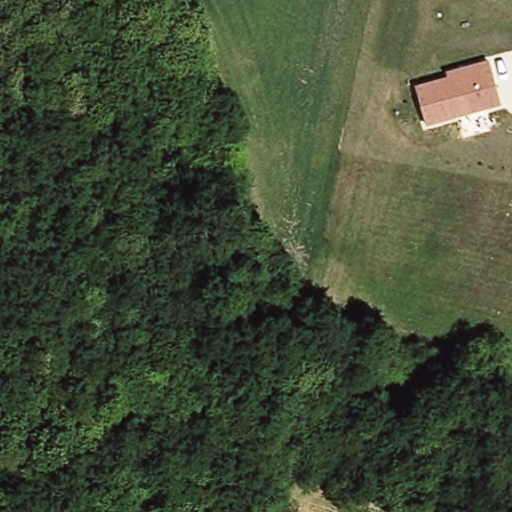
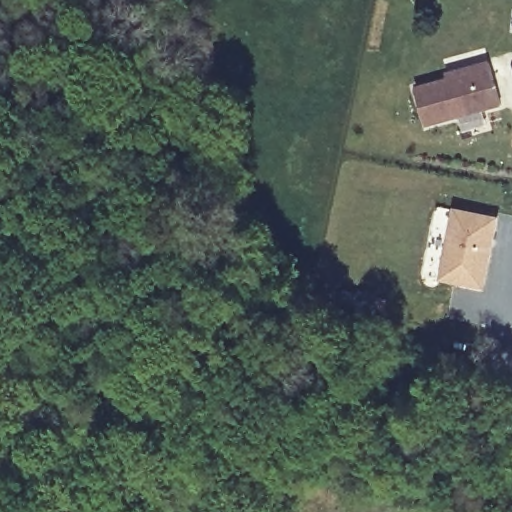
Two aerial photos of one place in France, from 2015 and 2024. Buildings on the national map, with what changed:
unchanged [(501,106),(427,128),(416,87),(448,79),(446,73),(488,61),(501,106)]
new [(459,209),(502,217),(487,287),(444,278),(459,209)]

